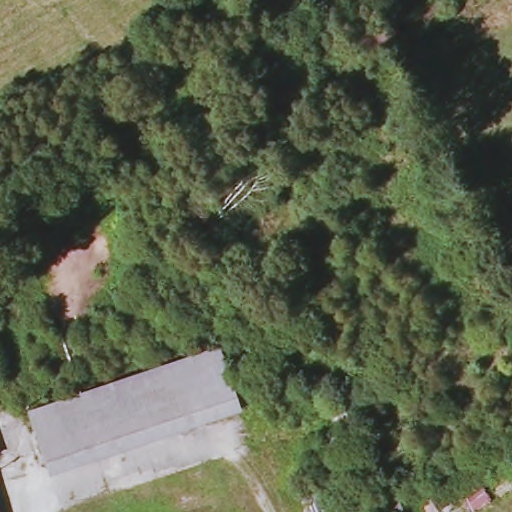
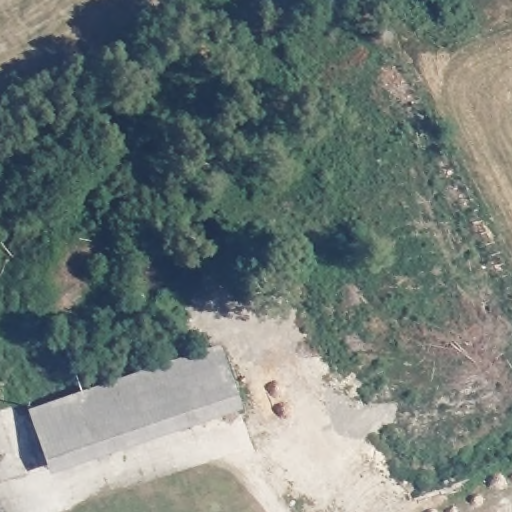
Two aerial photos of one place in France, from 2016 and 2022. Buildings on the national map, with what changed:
unchanged [(60,406),(218,351),(236,403),(78,458),(60,406)]
unchanged [(48,468),(30,416),(60,406),(78,458),(48,468)]

